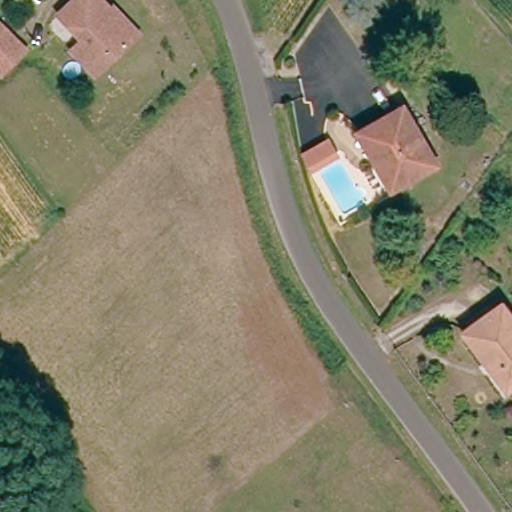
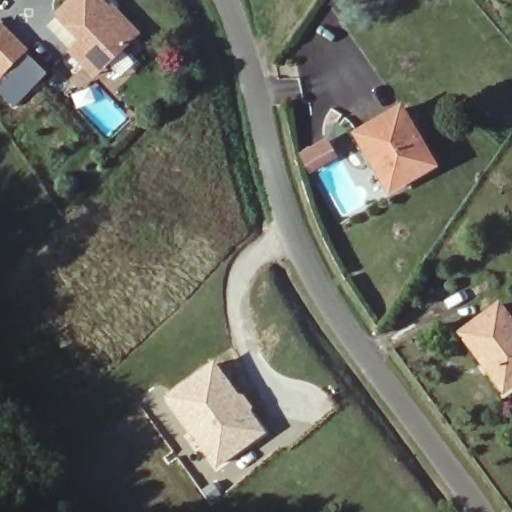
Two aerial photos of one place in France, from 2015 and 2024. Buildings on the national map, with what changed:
unchanged [(80,52),(91,41),(67,16),(84,0),(108,0),(144,38),(115,66),(104,77),(94,67),(80,52)]
unchanged [(9,80),(0,71),(0,37),(7,30),(33,57),(9,80)]
unchanged [(389,189),(361,140),(404,115),(432,165),(389,189)]
unchanged [(302,156),(331,141),(339,155),(309,170),(302,156)]
unchanged [(481,354),(465,332),(502,305),(512,318),(512,389),(503,395),(476,357),(481,354)]
new [(214,358),(247,400),(267,432),(215,471),(194,445),(160,396),(214,358)]

